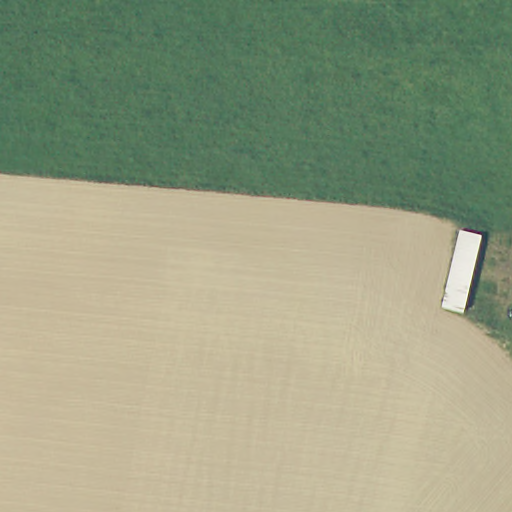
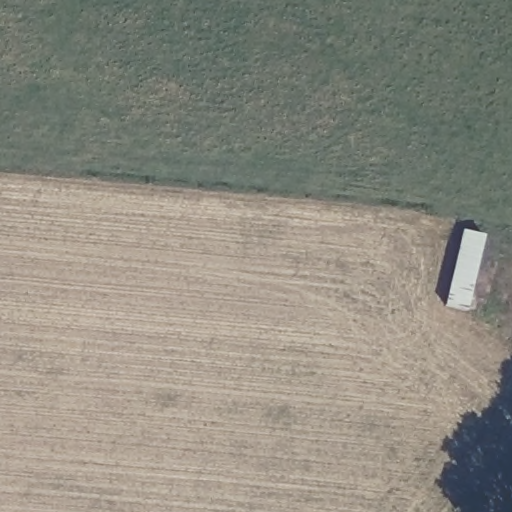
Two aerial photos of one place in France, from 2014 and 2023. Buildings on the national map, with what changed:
unchanged [(481,233),(460,308),(440,303),(461,228),(481,233)]

